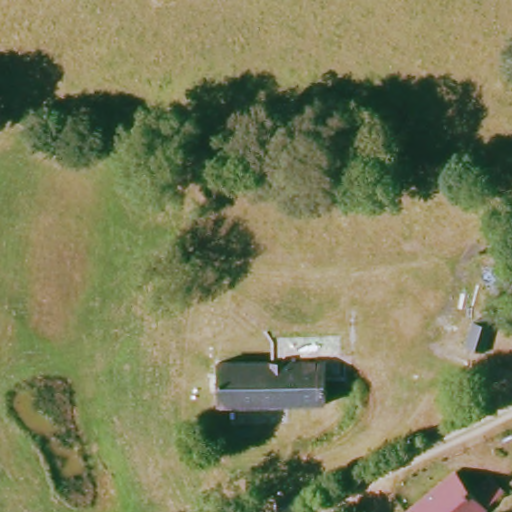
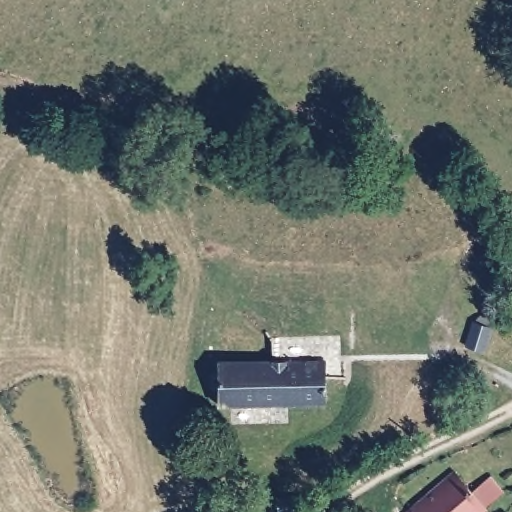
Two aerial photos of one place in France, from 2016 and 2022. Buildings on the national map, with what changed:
unchanged [(326,405),(221,404),(221,364),(326,363),(326,405)]
unchanged [(468,503),(488,489),(499,504),(491,512),(417,512),(454,483),(468,503)]
unchanged [(298,507),(276,509),(273,491),(299,488),(298,507)]

